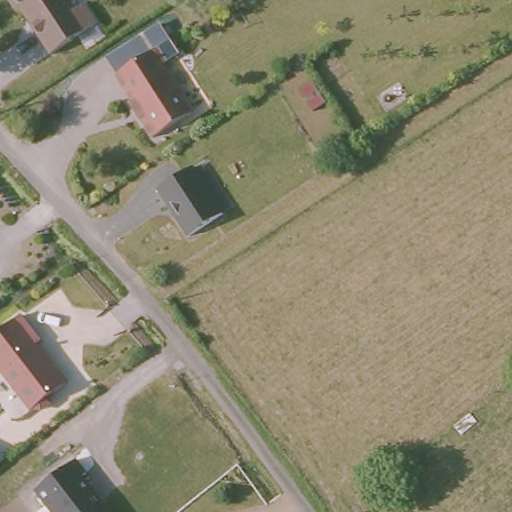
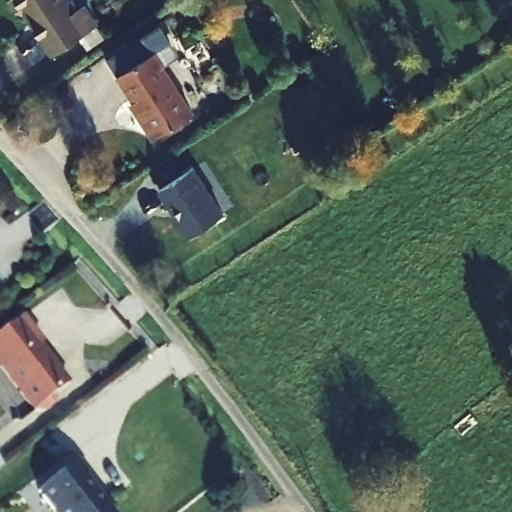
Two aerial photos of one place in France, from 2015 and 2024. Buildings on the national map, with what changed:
unchanged [(78,5),(84,1),(98,20),(59,49),(48,33),(44,35),(28,12),(18,13),(10,0),(75,0),(78,5)]
unchanged [(159,65),(156,67),(186,115),(148,139),(136,120),(139,117),(129,102),(125,104),(108,75),(148,48),(159,65)]
unchanged [(211,211),(177,234),(153,199),(188,176),(211,211)]
unchanged [(48,344),(78,383),(63,395),(62,403),(53,409),(46,408),(43,410),(0,353),(0,339),(31,315),(51,342),(48,344)]
unchanged [(113,512),(51,512),(35,490),(78,462),(113,512)]
unchanged [(0,469),(0,467),(1,469),(0,469)]

